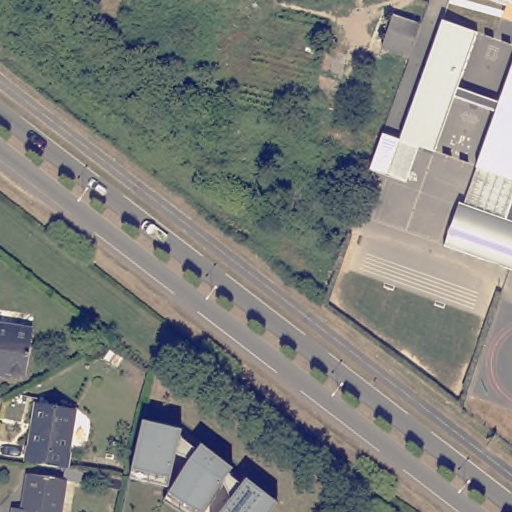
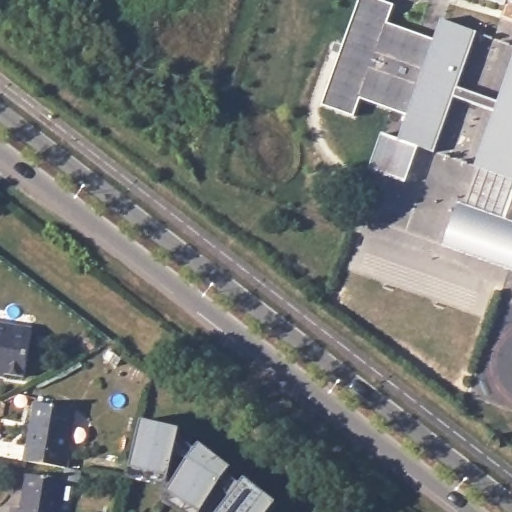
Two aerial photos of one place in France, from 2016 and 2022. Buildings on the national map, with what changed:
new [(381,0),(395,5),(389,23),(432,37),(405,115),(360,99),(354,117),(322,105),(360,0),(381,0)]
unchanged [(481,0),(504,0),(501,7),(481,0)]
demolished [(418,25),(406,57),(380,49),(391,15),(418,25)]
unchanged [(490,114),(450,99),(430,154),(395,141),(438,21),(473,34),(454,89),(493,104),(512,52),(512,183),(470,169),(490,114)]
unchanged [(198,137),(204,119),(215,122),(208,140),(198,137)]
unchanged [(170,121),(177,130),(179,130),(201,160),(195,179),(158,130),(170,121)]
new [(395,141),(418,150),(407,182),(369,169),(381,132),(396,139),(395,141)]
unchanged [(438,247),(453,204),(457,205),(470,169),(512,183),(512,274),(441,249),(438,247)]
unchanged [(313,225),(316,215),(324,217),(328,208),(337,211),(331,230),(313,225)]
unchanged [(32,326),(23,373),(0,370),(0,321),(32,326)]
unchanged [(32,450),(33,450),(41,406),(80,412),(73,456),(74,458),(71,473),(29,466),(32,450)]
unchanged [(141,420),(181,427),(178,437),(194,450),(200,443),(232,466),(225,475),(240,485),(246,478),(277,500),(268,512),(217,512),(228,497),(216,489),(201,512),(184,512),(162,497),(170,486),(131,478),(131,465),(141,420)]
unchanged [(17,506),(25,507),(31,473),(69,479),(64,512),(16,512),(17,506)]

